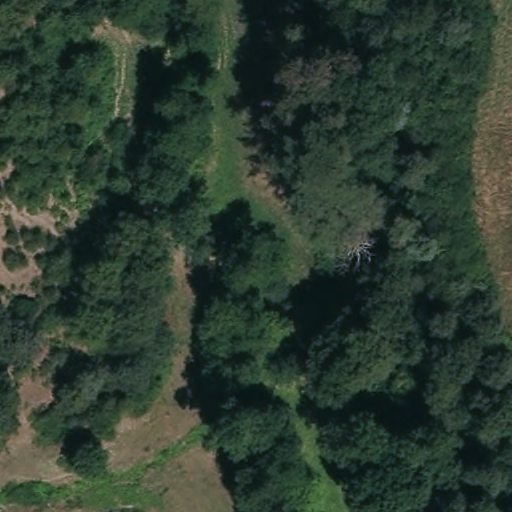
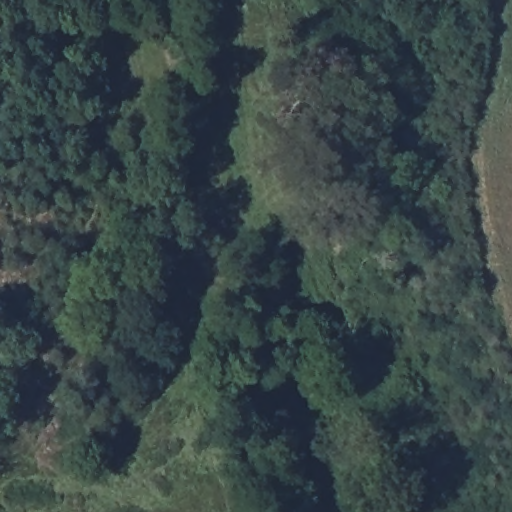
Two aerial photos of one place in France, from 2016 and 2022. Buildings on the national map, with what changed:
[]

